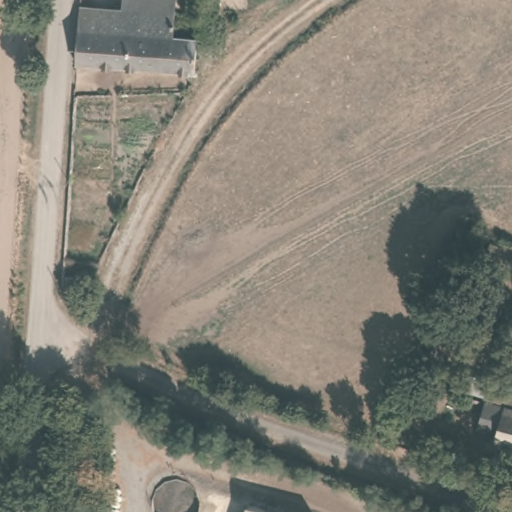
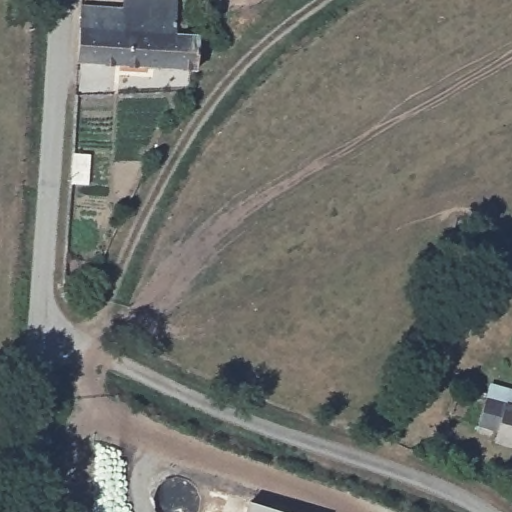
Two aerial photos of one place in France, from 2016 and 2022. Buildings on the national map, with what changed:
unchanged [(219,0),(234,0),(234,8),(219,8),(219,0)]
unchanged [(138,15),(137,39),(80,35),(81,12),(138,15)]
unchanged [(137,39),(138,15),(176,17),(176,25),(180,24),(183,26),(185,28),(186,31),(186,35),(184,37),(181,39),(177,39),(174,37),(174,44),(198,44),(197,75),(76,71),(80,35),(137,39)]
unchanged [(512,407),(512,445),(495,441),(506,406),(512,407)]
unchanged [(505,492),(503,490),(502,486),(503,482),(505,478),(509,477),(512,477),(512,504),(505,499),(508,494),(505,492)]
unchanged [(246,506),(270,512),(244,512),(246,506)]

